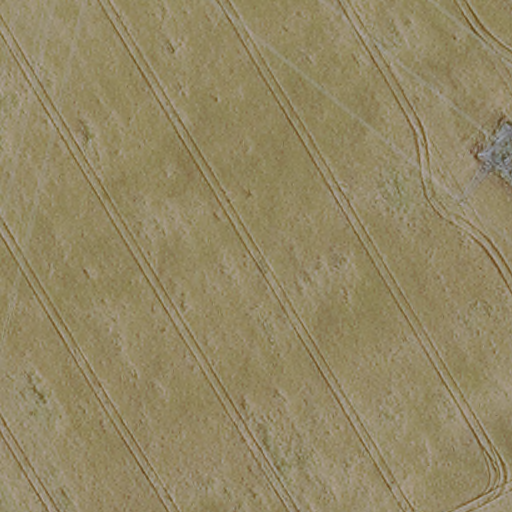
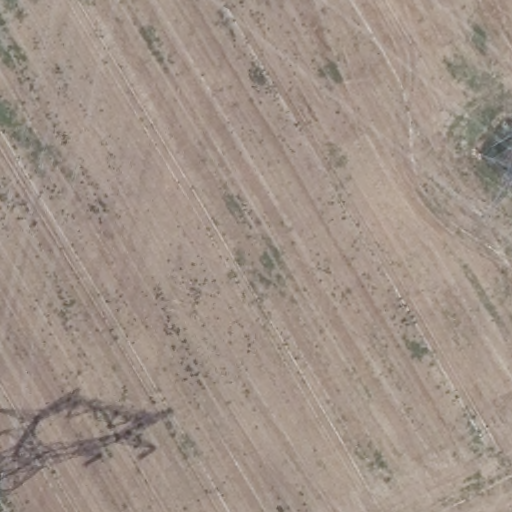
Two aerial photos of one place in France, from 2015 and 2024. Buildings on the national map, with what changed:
[]

